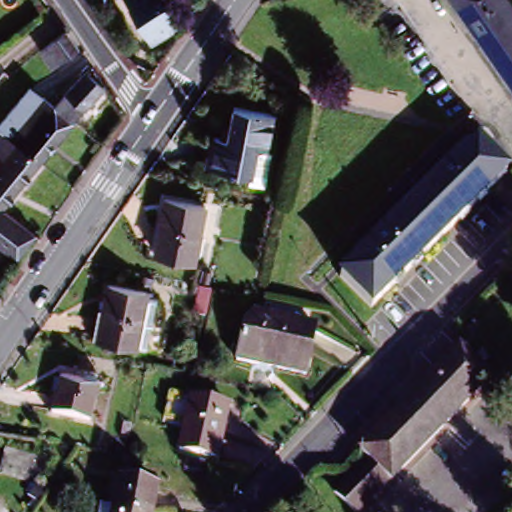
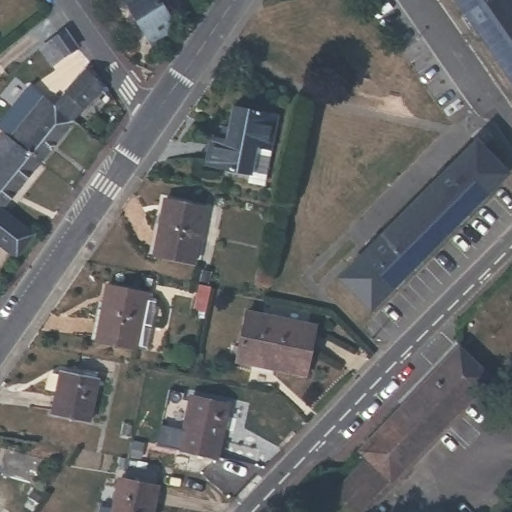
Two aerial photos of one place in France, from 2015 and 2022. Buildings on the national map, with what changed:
unchanged [(121,0),(122,0),(158,0),(178,33),(152,50),(121,0)]
unchanged [(452,0),(505,0),(512,10),(512,87),(452,0)]
unchanged [(64,56),(52,65),(40,49),(53,40),(65,30),(76,47),(64,56)]
unchanged [(83,113),(73,125),(55,111),(63,102),(67,96),(85,76),(103,91),(83,113)]
unchanged [(39,166),(3,137),(0,135),(0,127),(29,91),(43,102),(43,101),(55,111),(73,125),(54,149),(39,166)]
unchanged [(259,155),(260,155),(253,187),(239,184),(240,179),(196,171),(203,141),(217,143),(223,110),(266,119),(259,155)]
unchanged [(3,212),(0,210),(0,140),(3,137),(39,166),(11,201),(3,212)]
unchanged [(371,308),(340,276),(476,141),(498,165),(493,175),(494,175),(498,167),(504,175),(371,308)]
unchanged [(189,263),(152,255),(158,225),(155,225),(160,199),(200,207),(189,263)]
unchanged [(18,262),(0,249),(0,212),(35,238),(18,262)]
unchanged [(206,310),(194,307),(199,283),(211,285),(206,310)]
unchanged [(136,355),(87,345),(98,289),(137,297),(136,301),(146,303),(136,355)]
unchanged [(306,379),(237,365),(247,316),(315,330),(306,379)]
unchanged [(390,485),(388,483),(360,512),(348,512),(334,497),(368,463),(360,455),(459,352),(490,382),(390,485)]
unchanged [(79,426),(42,418),(50,376),(73,381),(75,375),(87,377),(86,383),(88,384),(79,426)]
unchanged [(211,463),(174,454),(186,401),(223,410),(211,463)]
unchanged [(39,484),(3,475),(10,449),(46,458),(39,484)]
unchanged [(153,512),(114,512),(119,482),(158,490),(153,512)]
unchanged [(100,510),(111,512),(100,512),(100,510)]

